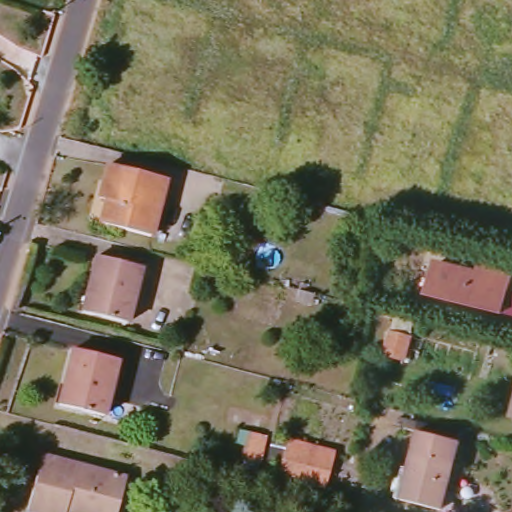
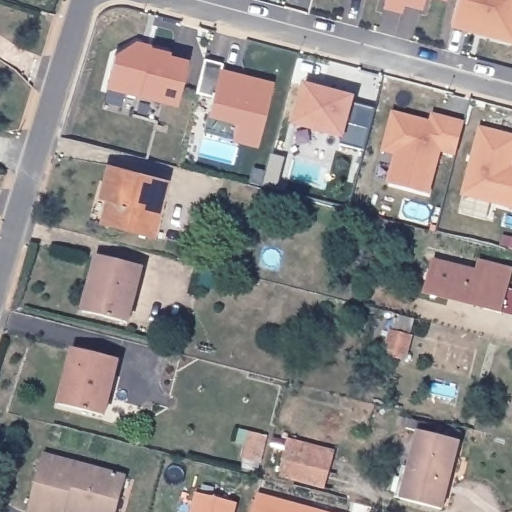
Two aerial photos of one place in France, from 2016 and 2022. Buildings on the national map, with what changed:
new [(422,10),(404,6),(402,13),(384,7),(386,0),(424,0),(422,10)]
new [(451,26),(458,0),(512,0),(512,41),(451,26)]
new [(176,104),(138,95),(106,88),(114,52),(137,40),(151,42),(151,46),(170,50),(168,55),(187,59),(176,104)]
new [(256,146),(232,139),(236,124),(208,115),(213,94),(198,92),(206,58),(223,63),(221,68),(274,81),(256,146)]
new [(357,95),(354,104),(376,107),(364,151),(338,141),(340,135),(285,123),(301,80),(357,95)]
new [(442,153),(430,192),(388,181),(394,154),(383,151),(394,110),(431,121),(433,114),(466,123),(457,156),(442,153)]
new [(462,195),(479,126),(512,135),(512,208),(462,195)]
unchanged [(164,179),(151,232),(111,222),(116,200),(107,197),(116,166),(164,179)]
unchanged [(143,270),(128,327),(85,316),(100,260),(143,270)]
unchanged [(470,275),(473,265),(508,273),(496,316),(478,311),(478,309),(423,295),(431,265),(470,275)]
unchanged [(118,365),(104,420),(61,408),(75,354),(118,365)]
unchanged [(336,451),(327,492),(279,477),(281,468),(266,465),(261,480),(241,473),(248,431),(271,434),(265,454),(284,459),(290,436),(336,451)]
unchanged [(442,512),(436,512),(401,503),(418,436),(459,447),(442,512)]
unchanged [(46,452),(129,475),(119,512),(34,512),(29,510),(46,452)]
new [(191,512),(196,492),(236,502),(234,512),(191,512)]
new [(325,512),(252,512),(258,492),(325,512)]

